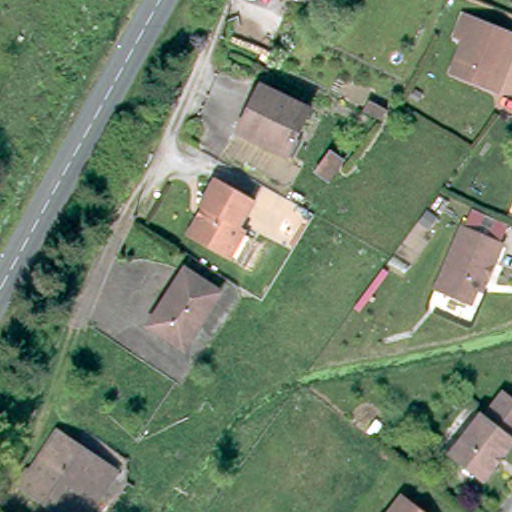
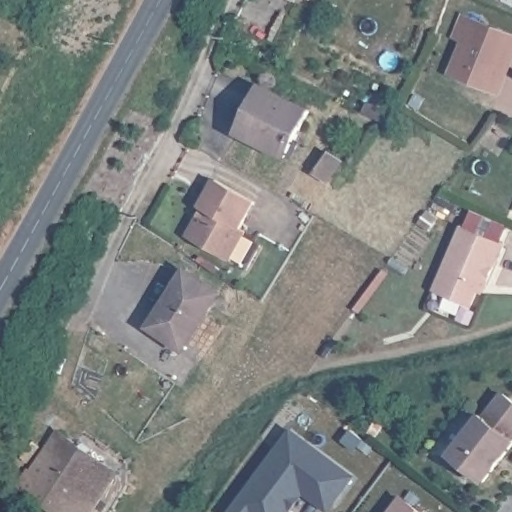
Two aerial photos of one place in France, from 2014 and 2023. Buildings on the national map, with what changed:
unchanged [(472,37),(462,32),(470,16),(512,34),(512,66),(503,86),(487,80),(459,69),(465,56),(472,37)]
unchanged [(265,83),(314,107),(292,153),(243,129),(265,83)]
unchanged [(334,185),(322,175),(338,155),(350,165),(334,185)]
unchanged [(218,178),(257,200),(242,227),(248,230),(232,258),(190,234),(202,214),(205,207),(202,205),(218,178)]
unchanged [(477,292),(472,306),(437,292),(462,230),(503,247),(487,285),(483,294),(477,292)]
unchanged [(190,342),(157,322),(191,268),(223,289),(190,342)]
unchanged [(457,457),(486,417),(490,420),(508,396),(512,399),(512,454),(490,483),(457,457)]
new [(328,512),(327,512),(305,496),(293,512),(229,512),(292,428),(355,475),(328,512)]
unchanged [(26,478),(57,431),(117,471),(89,512),(58,512),(20,485),(26,478)]
unchanged [(425,512),(390,512),(403,496),(425,512)]

